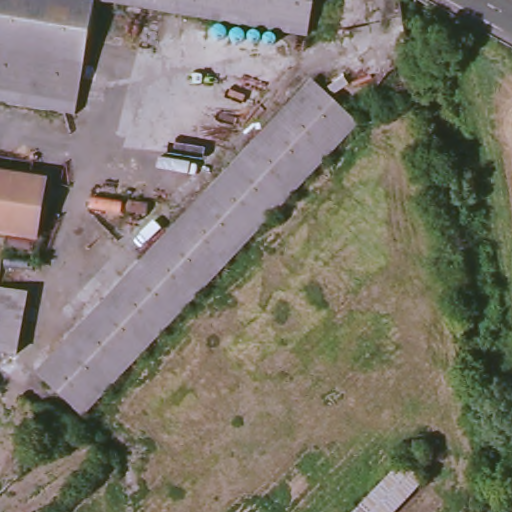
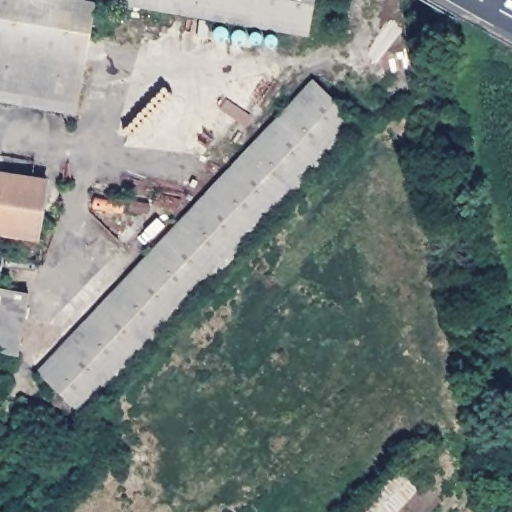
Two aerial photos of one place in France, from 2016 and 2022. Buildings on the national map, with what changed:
unchanged [(72,111),(0,99),(0,0),(72,0),(92,3),(72,111)]
unchanged [(307,33),(104,0),(312,0),(307,33)]
unchanged [(315,80),(362,124),(87,413),(40,368),(315,80)]
unchanged [(30,233),(0,229),(0,170),(40,176),(30,233)]
unchanged [(18,356),(0,353),(0,291),(30,297),(18,356)]
unchanged [(427,489),(404,512),(363,512),(407,469),(427,489)]

